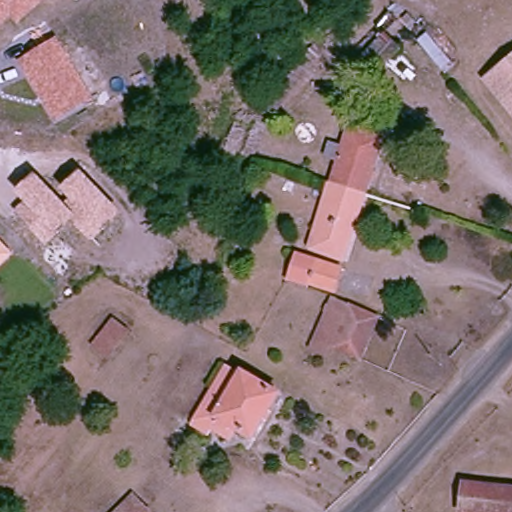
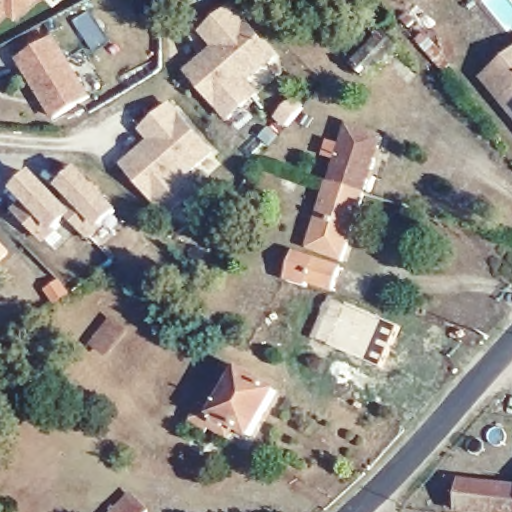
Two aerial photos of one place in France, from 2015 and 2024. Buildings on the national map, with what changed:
unchanged [(18,25),(9,17),(0,26),(0,0),(43,0),(18,25)]
new [(280,55),(250,82),(262,94),(230,122),(185,72),(213,46),(200,31),(234,2),(280,55)]
unchanged [(409,35),(399,45),(374,22),(384,11),(409,35)]
unchanged [(379,31),(393,44),(365,74),(351,61),(379,31)]
unchanged [(58,37),(92,96),(53,120),(20,61),(58,37)]
demolished [(512,43),(512,110),(479,71),(512,43)]
new [(481,77),(512,52),(512,114),(481,77)]
new [(121,165),(149,140),(139,130),(172,101),(216,152),(188,177),(200,191),(166,220),(121,165)]
unchanged [(325,177),(343,122),(377,132),(358,187),(336,255),(303,244),(324,180),(325,177)]
unchanged [(61,189),(82,169),(122,212),(104,230),(92,242),(70,221),(56,233),(45,245),(15,214),(26,202),(14,191),(35,172),(66,205),(69,197),(61,189)]
unchanged [(0,266),(0,241),(12,254),(0,266)]
unchanged [(303,278),(301,282),(292,280),(285,277),(294,251),(334,264),(327,286),(303,278)]
unchanged [(327,292),(373,312),(354,356),(326,343),(323,351),(306,343),(327,292)]
unchanged [(97,350),(85,340),(102,317),(115,327),(97,350)]
unchanged [(287,387),(261,432),(225,411),(216,427),(202,420),(237,361),(250,368),(251,367),(287,387)]
unchanged [(488,512),(449,507),(453,477),(512,484),(512,512),(488,512)]
unchanged [(106,512),(126,491),(143,507),(138,512),(106,512)]

